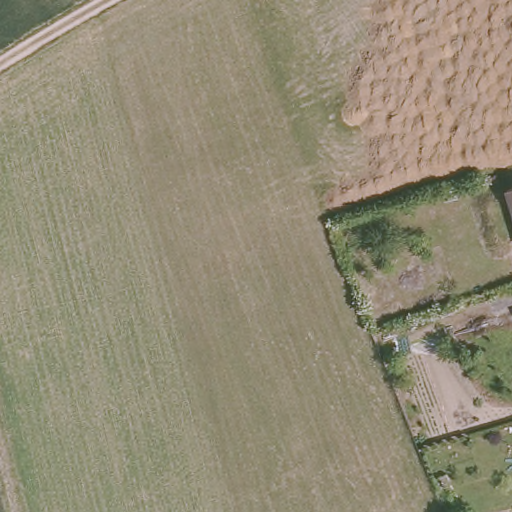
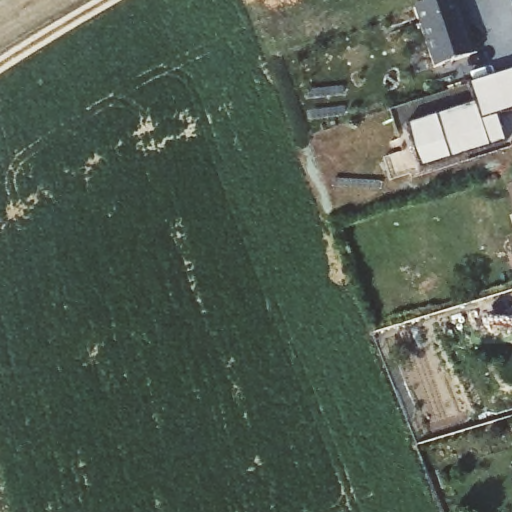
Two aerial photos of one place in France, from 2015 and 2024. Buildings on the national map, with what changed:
new [(443,0),(458,0),(477,56),(433,71),(412,10),(443,0)]
new [(478,117),(466,81),(512,67),(512,107),(478,117)]
new [(478,117),(494,112),(503,140),(418,167),(404,122),(472,100),(478,117)]
unchanged [(502,185),(512,181),(512,217),(502,185)]

